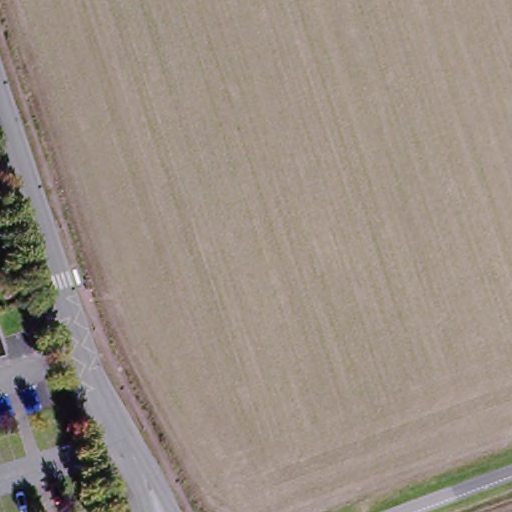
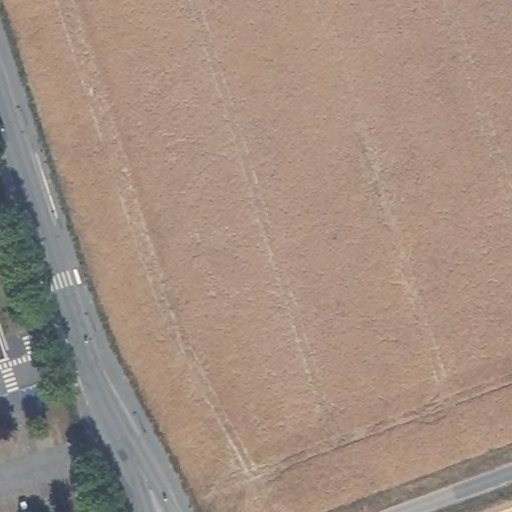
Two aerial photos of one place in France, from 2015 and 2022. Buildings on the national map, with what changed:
unchanged [(9,357),(0,361),(0,329),(9,357)]

